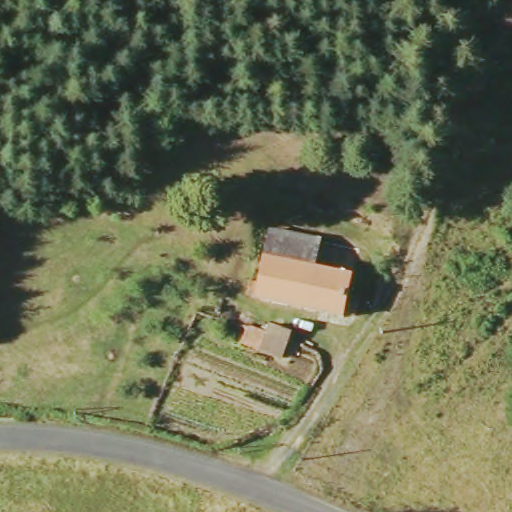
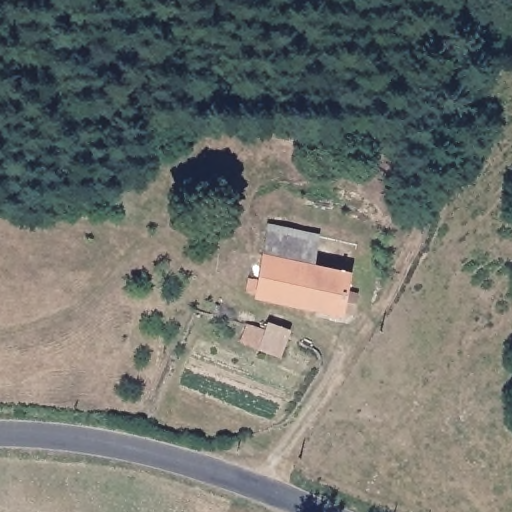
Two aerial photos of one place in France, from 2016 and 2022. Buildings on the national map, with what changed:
unchanged [(263,259),(270,227),(356,243),(352,272),(263,259)]
unchanged [(356,312),(341,311),(342,314),(256,297),(263,259),(352,272),(350,290),(363,297),(356,312)]
unchanged [(281,357),(240,343),(244,326),(265,333),(266,327),(289,335),(286,341),(281,357)]

